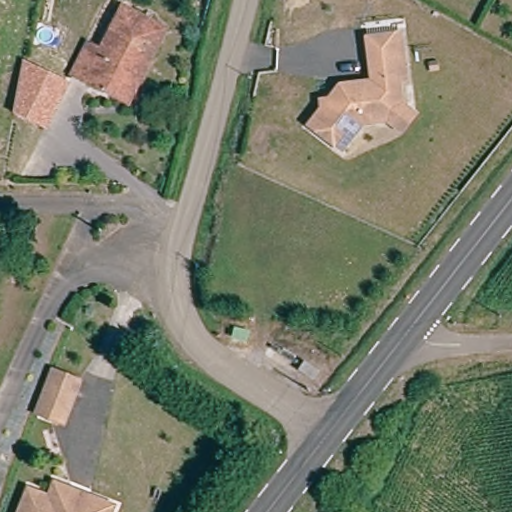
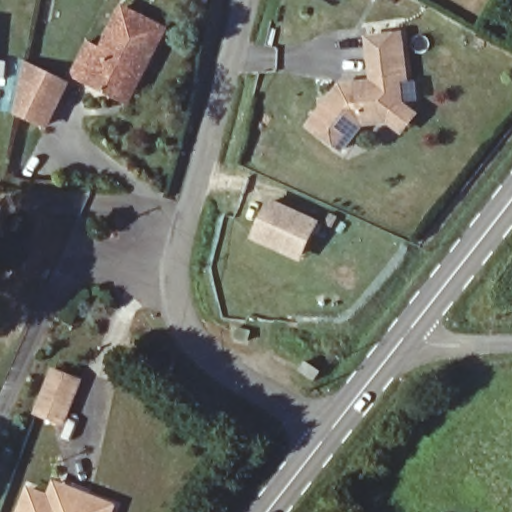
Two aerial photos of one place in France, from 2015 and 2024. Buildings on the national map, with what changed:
unchanged [(109,88),(73,70),(90,35),(107,42),(125,2),(173,25),(159,54),(136,101),(109,88)]
unchanged [(404,129),(392,117),(366,120),(344,145),(314,119),(327,104),(327,95),(335,94),(347,80),(361,80),(378,78),(374,34),(407,31),(410,76),(403,77),(405,101),(419,112),(404,129)]
unchanged [(70,84),(48,130),(14,113),(23,61),(70,84)]
new [(270,200),(320,222),(303,261),(253,239),(270,200)]
unchanged [(36,415),(55,374),(80,386),(61,425),(36,415)]
unchanged [(115,512),(20,512),(30,488),(53,498),(60,481),(118,507),(115,512)]

